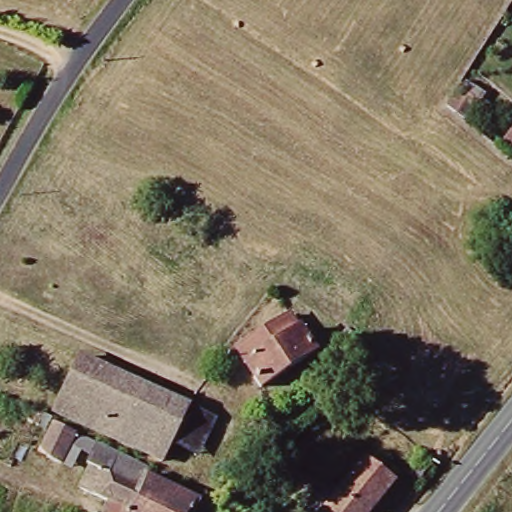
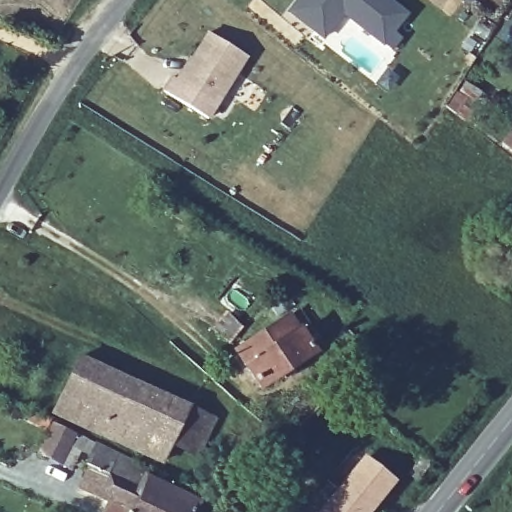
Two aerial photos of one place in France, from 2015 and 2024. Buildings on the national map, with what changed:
new [(288,11),(297,0),(388,0),(406,15),(392,33),(400,39),(391,50),(383,44),(382,45),(342,13),(321,38),(313,31),(288,11)]
new [(173,77),(179,81),(209,33),(246,57),(208,119),(164,91),(173,77)]
unchanged [(293,317),(302,330),(248,362),(240,348),(293,317)]
unchanged [(302,330),(315,352),(261,384),(248,362),(302,330)]
unchanged [(78,355),(210,418),(191,457),(164,443),(156,459),(52,411),(78,355)]
unchanged [(64,447),(49,480),(30,471),(51,427),(76,440),(70,451),(64,447)]
unchanged [(116,511),(84,495),(98,464),(70,451),(76,440),(204,504),(200,512),(116,512),(116,511)]
unchanged [(366,460),(395,482),(372,512),(325,512),(366,460)]

